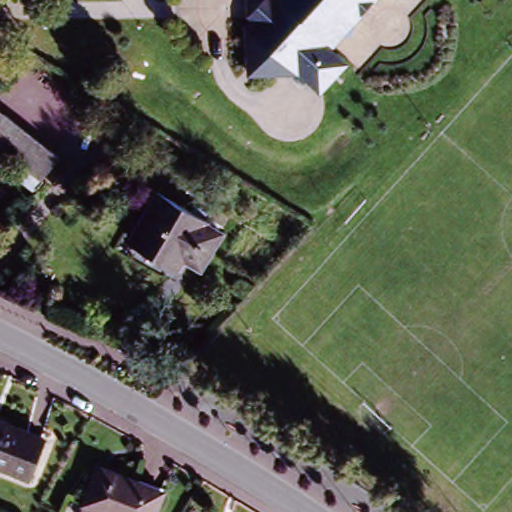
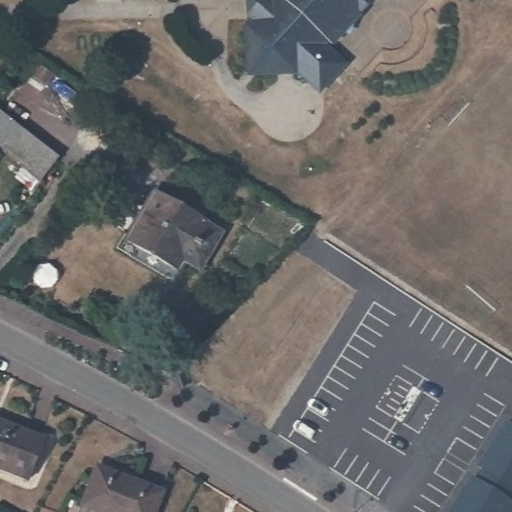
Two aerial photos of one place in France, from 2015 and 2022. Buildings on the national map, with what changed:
unchanged [(322,96),(292,69),(284,78),(263,77),(253,68),(252,46),(261,36),(252,29),(257,23),(257,4),(277,3),(279,0),(382,0),(335,50),(330,46),(325,50),(347,70),(322,96)]
unchanged [(0,116),(58,160),(42,181),(0,150),(0,116)]
unchanged [(203,213),(200,220),(221,236),(200,273),(176,256),(170,266),(131,238),(163,186),(203,213)]
new [(450,512),(472,476),(475,478),(481,470),(477,467),(505,422),(512,425),(512,503),(512,512),(450,512)]
unchanged [(22,479),(0,468),(0,423),(43,442),(22,479)]
unchanged [(145,512),(104,512),(77,500),(93,464),(153,490),(145,512)]

